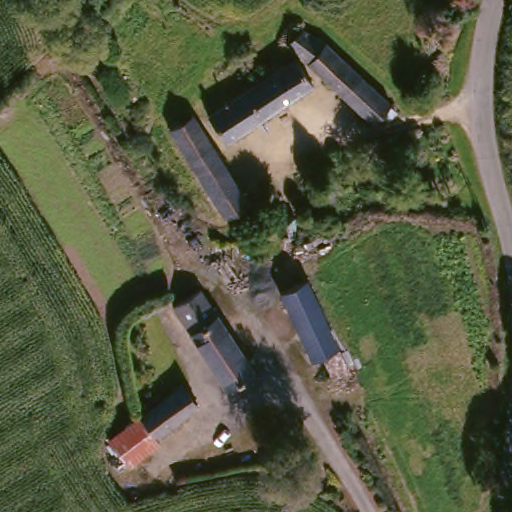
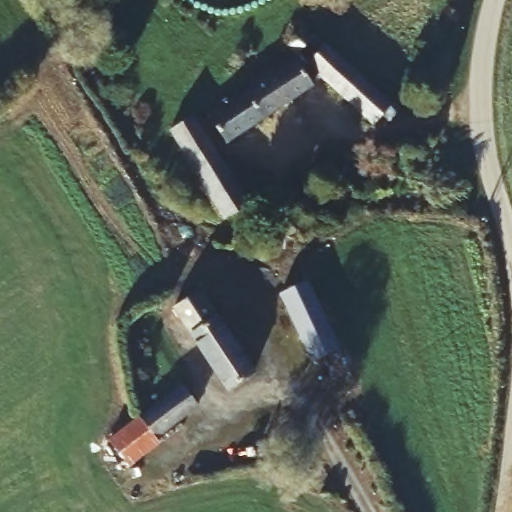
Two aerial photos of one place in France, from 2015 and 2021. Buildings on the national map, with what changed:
unchanged [(388,102),(368,124),(281,46),(301,25),(388,102)]
unchanged [(290,60),(308,86),(222,142),(206,116),(290,60)]
unchanged [(168,122),(189,110),(241,200),(221,213),(168,122)]
unchanged [(296,222),(295,241),(278,240),(279,221),(296,222)]
unchanged [(354,370),(336,377),(326,353),(314,358),(286,290),(311,278),(342,347),(343,347),(354,370)]
unchanged [(253,375),(225,392),(173,311),(201,295),(253,375)]
unchanged [(127,465),(104,438),(133,408),(138,416),(180,382),(197,407),(127,465)]

